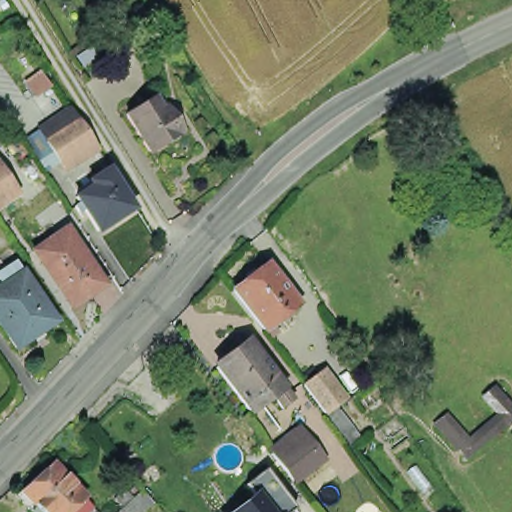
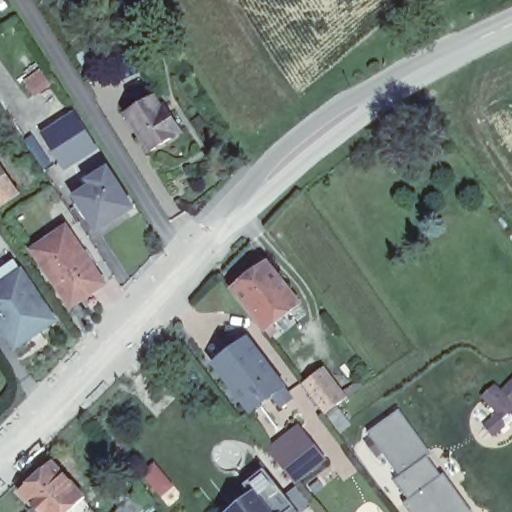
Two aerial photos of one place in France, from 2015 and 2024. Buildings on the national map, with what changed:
unchanged [(139,119),(165,104),(171,114),(177,110),(194,137),(187,141),(160,158),(139,119)]
unchanged [(85,126),(95,141),(98,146),(65,169),(52,148),(85,126)]
unchanged [(3,168),(25,201),(3,215),(0,212),(0,170),(3,168)]
unchanged [(102,194),(99,189),(117,177),(141,215),(107,237),(85,204),(102,194)]
unchanged [(78,307),(45,257),(76,235),(114,290),(97,302),(82,313),(78,307)]
unchanged [(7,292),(0,281),(20,268),(37,294),(39,294),(50,311),(50,313),(60,328),(20,354),(0,324),(0,297),(7,292)]
unchanged [(244,295),(277,270),(308,310),(275,336),(244,295)]
unchanged [(271,397),(250,413),(216,369),(250,343),(282,388),(289,395),(277,404),(271,397)]
unchanged [(304,385),(320,373),(342,403),(325,414),(304,385)]
new [(480,426),(494,411),(482,397),(495,384),(500,390),(512,379),(512,421),(492,438),(480,426)]
demolished [(440,427),(455,417),(474,441),(505,417),(489,402),(504,388),(512,397),(512,435),(477,466),(440,427)]
new [(402,505),(407,500),(392,480),(397,475),(366,433),(396,410),(469,512),(406,512),(402,505)]
unchanged [(330,424),(330,425),(324,430),(316,420),(322,415),(324,414),(330,424)]
unchanged [(274,449),(304,427),(317,445),(317,446),(325,457),(297,479),(289,468),(274,449)]
unchanged [(95,508),(91,512),(44,512),(26,492),(57,464),(87,496),(92,503),(95,508)]
unchanged [(253,498),(245,487),(264,472),(295,510),(293,512),(236,512),(253,498)]
unchanged [(120,508),(114,500),(125,491),(132,498),(120,508)]
unchanged [(143,512),(118,512),(142,492),(153,504),(143,512)]

